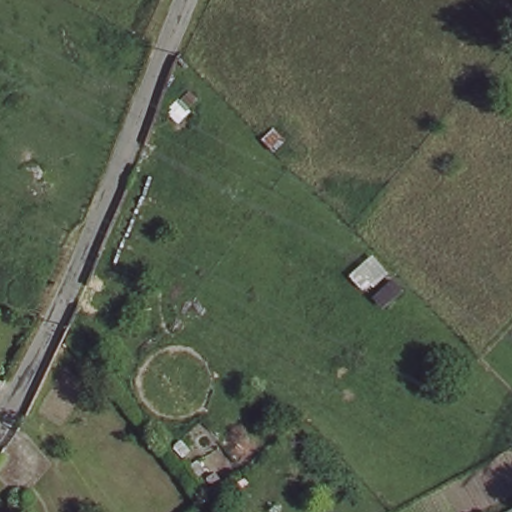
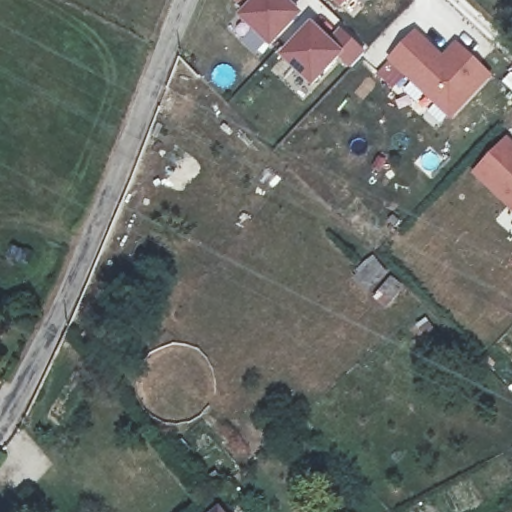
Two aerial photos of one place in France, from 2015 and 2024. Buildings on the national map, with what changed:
new [(282,0),(297,14),(269,44),(242,17),(249,9),(238,1),(239,0),(282,0)]
new [(335,0),(345,0),(340,5),(335,0)]
new [(338,54),(310,84),(284,57),(312,28),(330,44),(341,33),(363,54),(350,66),(338,54)]
new [(440,59),(455,44),(487,76),(452,118),(388,60),(410,34),(440,59)]
new [(470,174),(506,136),(512,142),(512,213),(470,174)]
new [(403,284),(389,309),(372,300),(352,275),(365,258),(388,270),(386,274),(403,284)]

